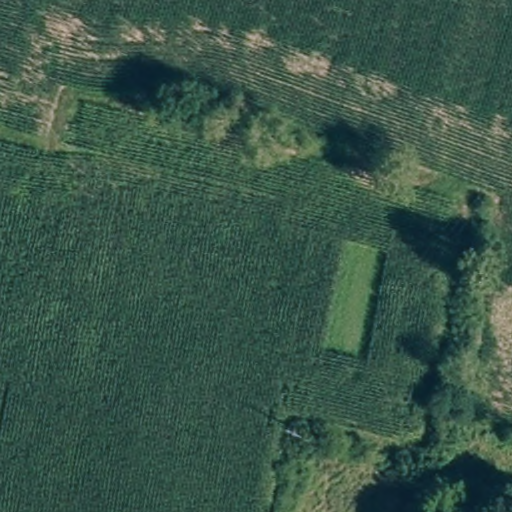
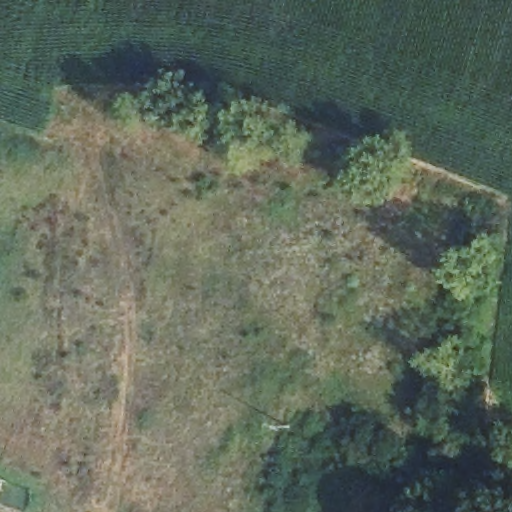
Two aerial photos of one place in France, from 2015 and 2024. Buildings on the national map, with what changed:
[]

